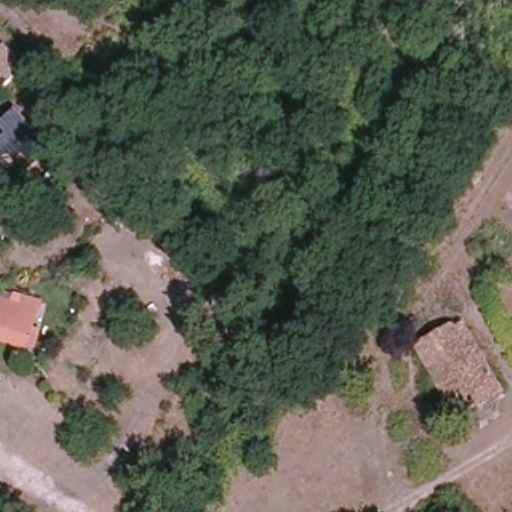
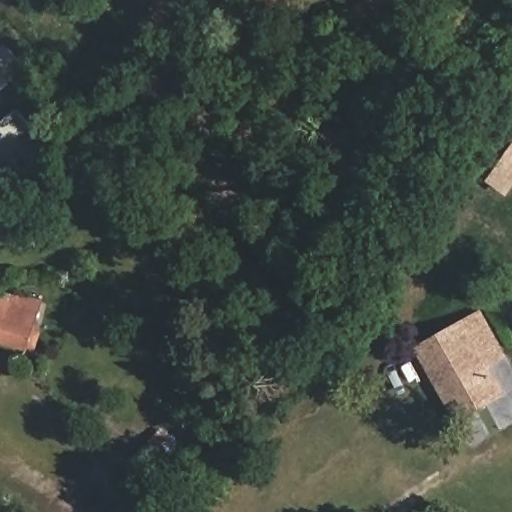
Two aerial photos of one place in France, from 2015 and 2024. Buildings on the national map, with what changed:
unchanged [(32,63),(9,83),(0,74),(0,55),(12,44),(32,63)]
unchanged [(0,197),(0,133),(2,135),(7,131),(2,124),(21,109),(55,150),(0,197)]
new [(487,180),(512,147),(512,189),(507,195),(487,180)]
unchanged [(33,349),(27,347),(0,339),(0,299),(4,300),(22,306),(26,297),(42,302),(34,328),(40,330),(33,349)]
unchanged [(418,347),(481,310),(507,355),(490,364),(503,388),(461,415),(418,347)]

